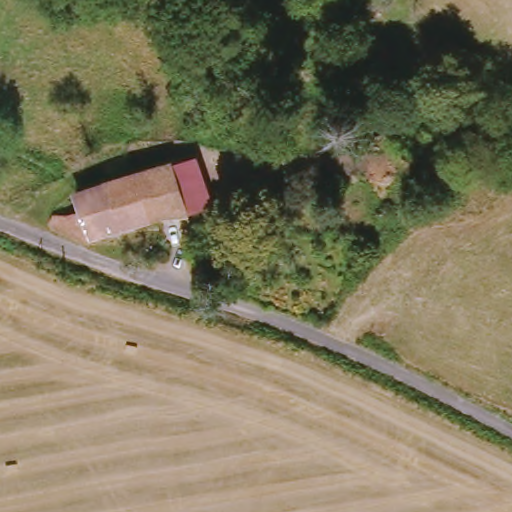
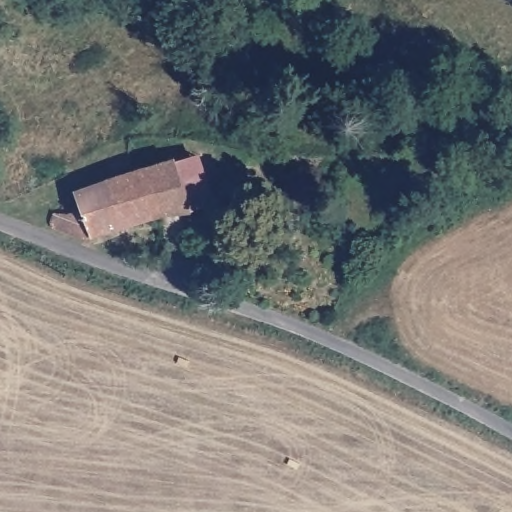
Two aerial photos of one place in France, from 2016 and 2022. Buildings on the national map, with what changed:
unchanged [(93,234),(93,242),(52,227),(56,215),(57,213),(61,212),(85,210),(79,187),(181,160),(203,154),(212,187),(189,194),(192,207),(93,234)]

